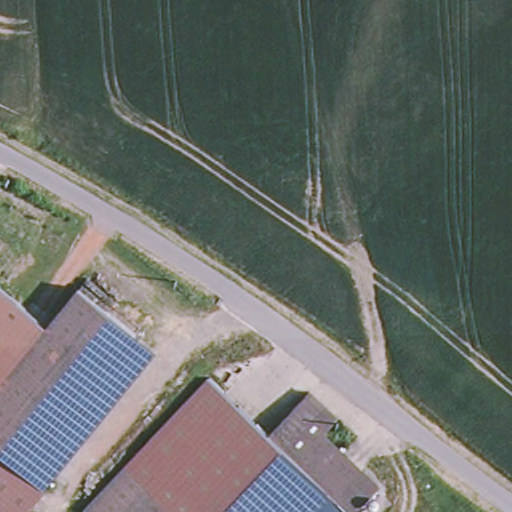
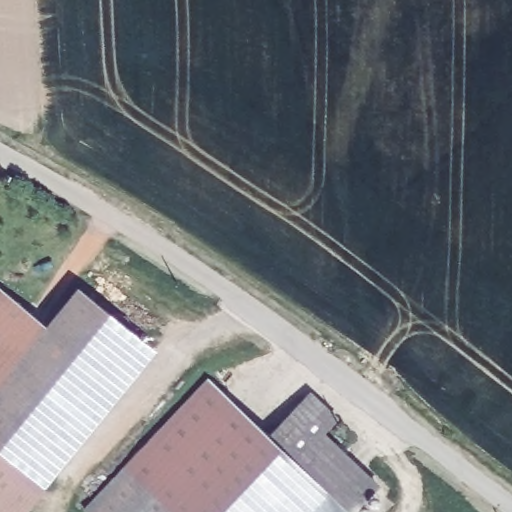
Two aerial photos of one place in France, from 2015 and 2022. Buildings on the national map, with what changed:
unchanged [(25,512),(0,512),(0,289),(0,288),(49,327),(80,288),(140,337),(30,475),(45,487),(46,488),(25,512)]
unchanged [(156,350),(45,487),(30,475),(140,337),(156,350)]
unchanged [(310,388),(337,414),(323,430),(378,482),(352,511),(350,510),(351,510),(335,497),(320,512),(97,512),(88,504),(209,375),(270,430),(310,388)]
unchanged [(350,510),(349,512),(320,512),(335,497),(351,510),(350,510)]

